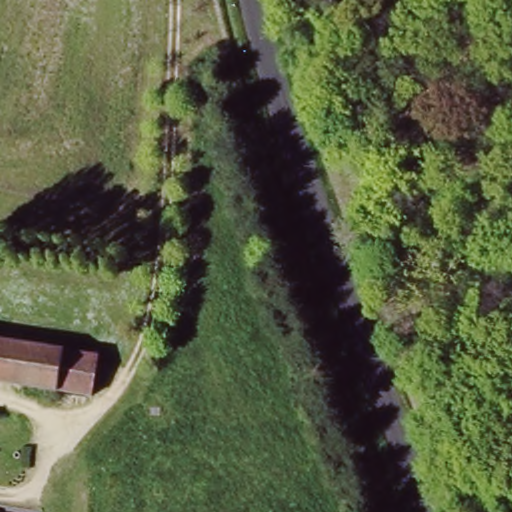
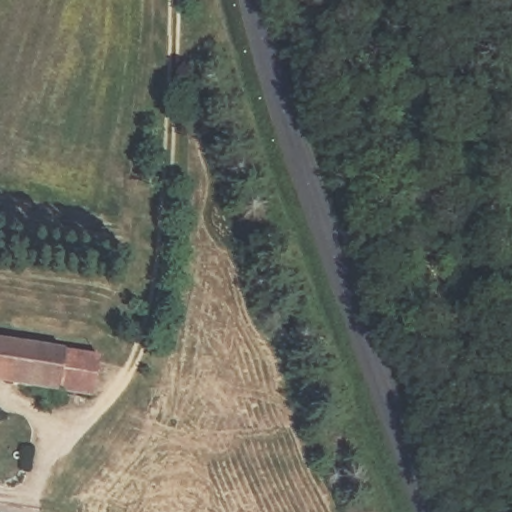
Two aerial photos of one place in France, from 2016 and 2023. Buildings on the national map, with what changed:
unchanged [(65,349),(55,392),(0,380),(0,336),(60,348),(65,349)]
unchanged [(104,356),(93,400),(55,392),(65,349),(104,356)]

